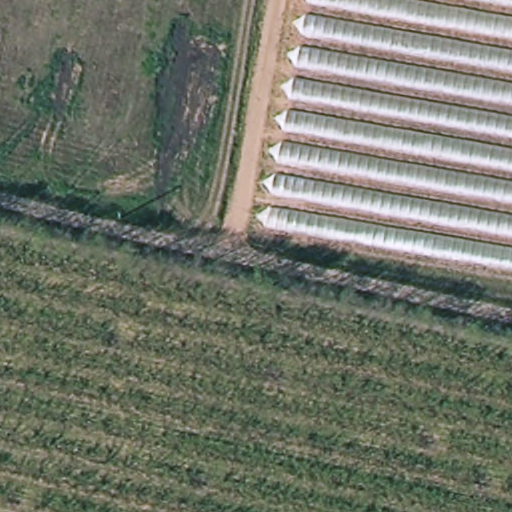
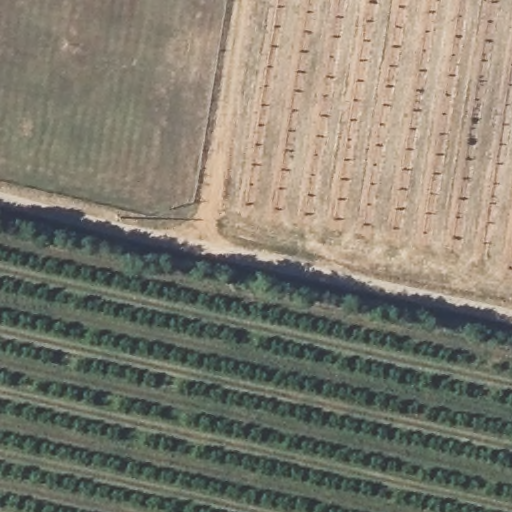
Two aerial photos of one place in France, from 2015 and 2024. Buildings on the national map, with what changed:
demolished [(271,208),(305,0),(512,0),(512,251),(271,208)]

